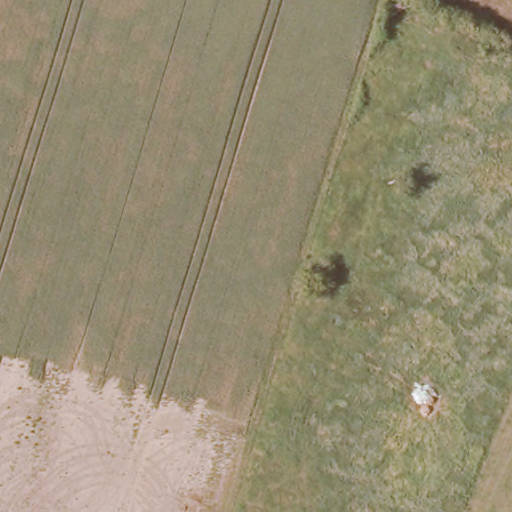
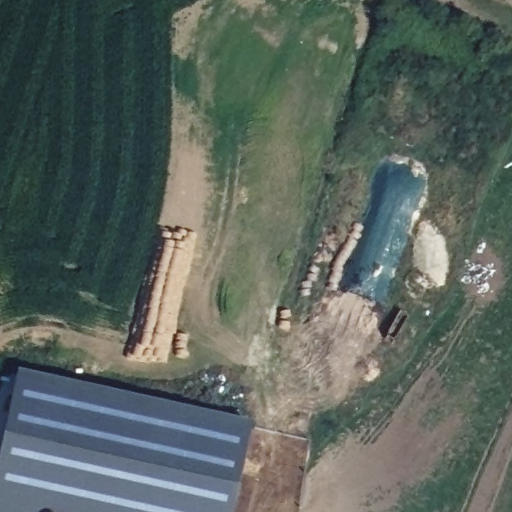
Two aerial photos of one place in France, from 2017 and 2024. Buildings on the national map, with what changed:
new [(64,512),(0,512),(0,451),(18,370),(77,383),(75,393),(250,432),(232,512),(69,512),(64,511),(64,512)]

